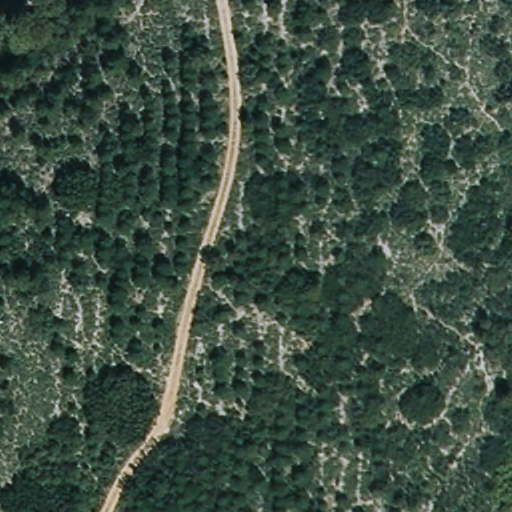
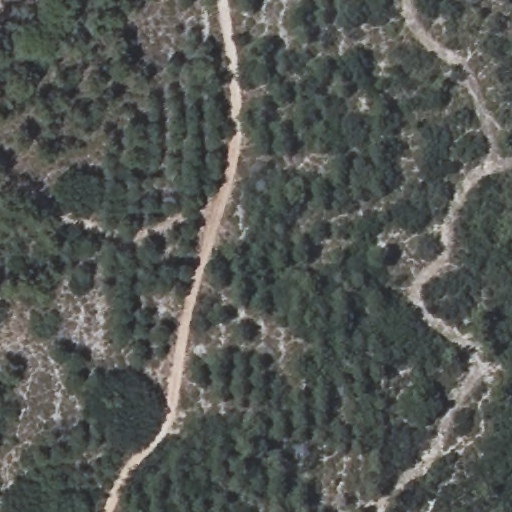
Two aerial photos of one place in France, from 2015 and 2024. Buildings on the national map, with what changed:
[]

